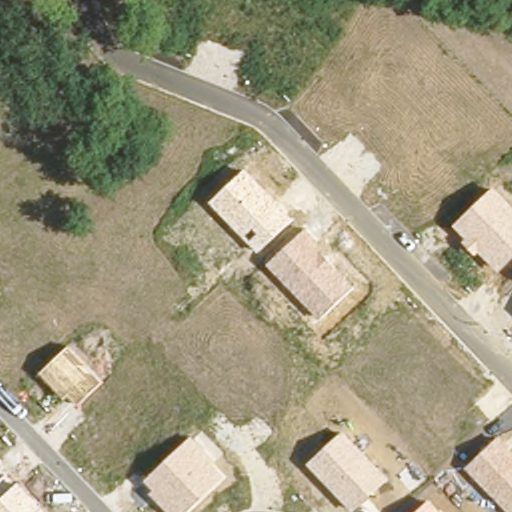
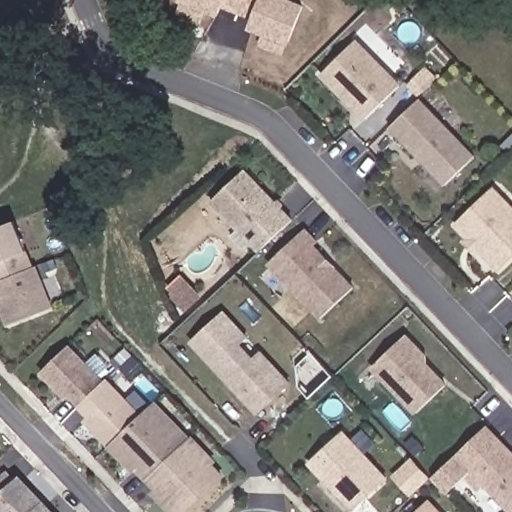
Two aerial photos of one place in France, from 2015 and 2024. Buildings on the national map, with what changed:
new [(253,20),(221,7),(220,16),(204,10),(202,24),(179,14),(182,1),(179,0),(180,0),(295,0),(305,4),(289,44),(286,43),(284,54),(260,45),(264,34),(249,28),(253,20)]
new [(396,84),(363,116),(341,93),(345,89),(340,83),(335,87),(321,72),(353,41),(396,84)]
new [(443,184),(389,125),(421,99),(472,154),(443,184)]
unchanged [(292,219),(258,251),(210,199),(247,167),(292,219)]
unchanged [(512,259),(498,271),(454,225),(495,186),(512,203),(512,259)]
new [(11,221),(30,267),(0,279),(0,226),(11,221)]
unchanged [(319,241),(314,246),(356,287),(320,321),(266,263),(306,227),(319,241)]
new [(50,306),(7,323),(0,305),(0,295),(2,294),(0,288),(0,279),(30,267),(34,265),(50,306)]
new [(255,413),(189,339),(225,309),(247,336),(242,344),(253,357),(263,351),(292,384),(255,413)]
new [(415,413),(370,366),(409,334),(430,358),(428,363),(446,383),(415,413)]
unchanged [(80,404),(71,394),(66,399),(41,372),(70,347),(103,381),(80,404)]
new [(133,470),(129,472),(81,420),(84,417),(76,407),(80,404),(103,381),(138,414),(154,401),(193,436),(145,479),(133,470)]
unchanged [(445,494),(430,477),(454,452),(488,423),(512,450),(512,512),(509,512),(471,471),(445,494)]
unchanged [(352,511),(308,463),(343,430),(390,478),(352,511)]
unchanged [(168,512),(150,493),(154,489),(145,479),(193,436),(215,459),(211,463),(225,476),(189,512),(168,512)]
unchanged [(11,470),(0,482),(0,459),(11,470)]
unchanged [(11,470),(51,512),(0,512),(0,482),(11,470)]
unchanged [(445,512),(419,512),(433,499),(445,512)]

